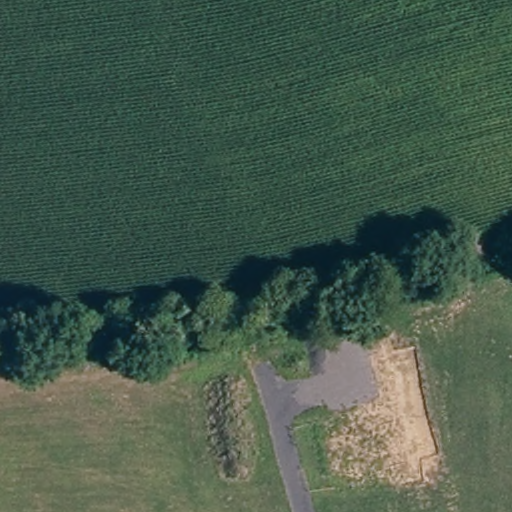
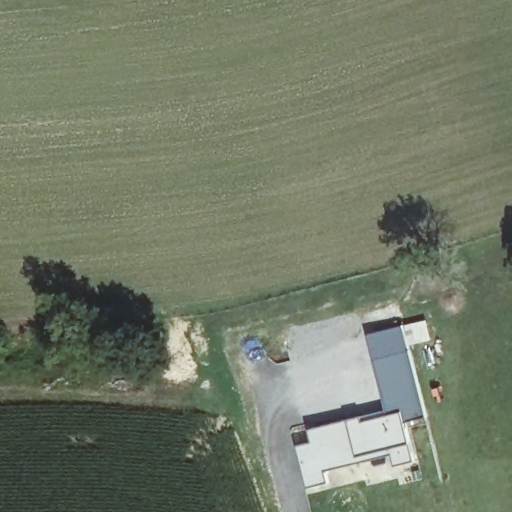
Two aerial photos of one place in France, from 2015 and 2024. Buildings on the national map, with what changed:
new [(407,423),(416,460),(397,464),(394,454),(328,469),(331,482),(311,488),(300,446),(315,442),(313,430),(366,417),(389,410),(377,361),(411,352),(428,418),(407,423)]

